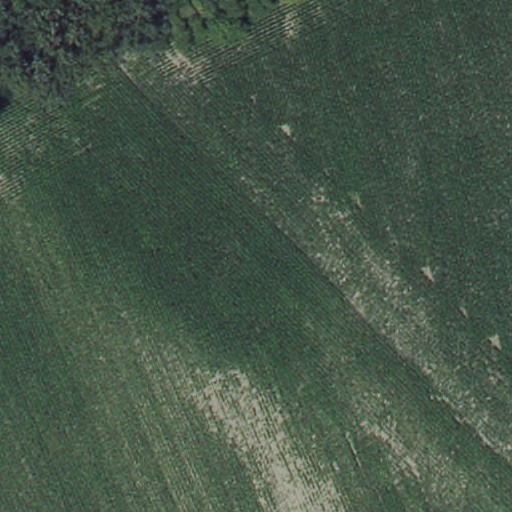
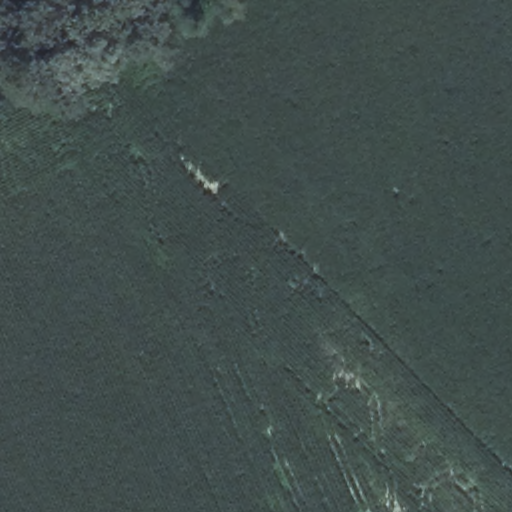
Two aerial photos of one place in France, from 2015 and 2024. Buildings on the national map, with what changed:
[]

